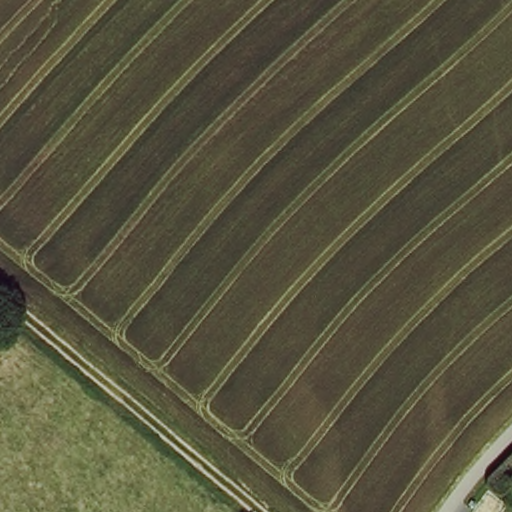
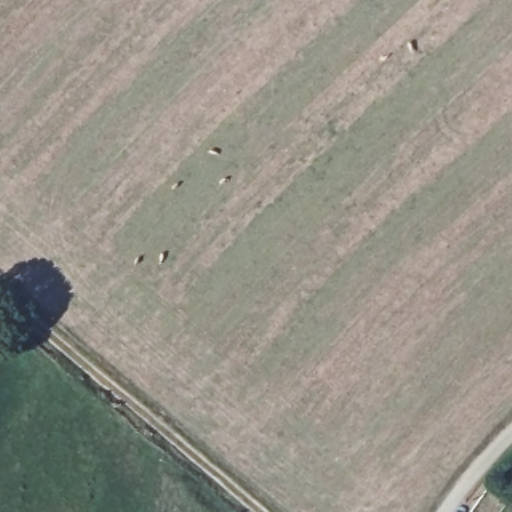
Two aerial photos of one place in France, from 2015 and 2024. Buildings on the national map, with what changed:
[]

